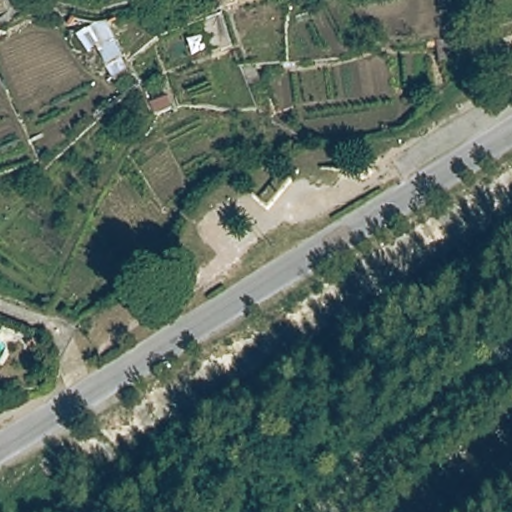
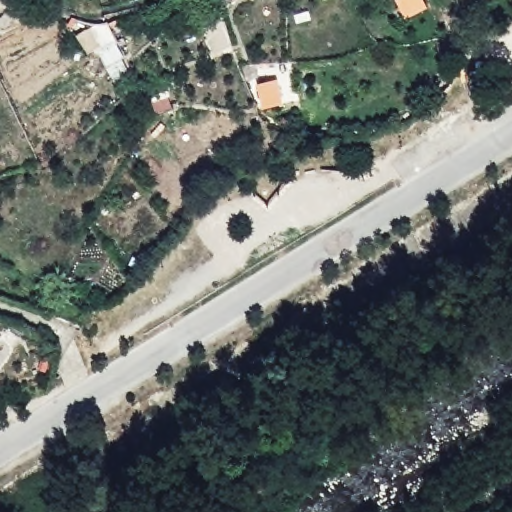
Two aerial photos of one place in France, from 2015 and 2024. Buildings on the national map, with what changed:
unchanged [(91,30),(110,23),(125,60),(108,68),(91,30)]

